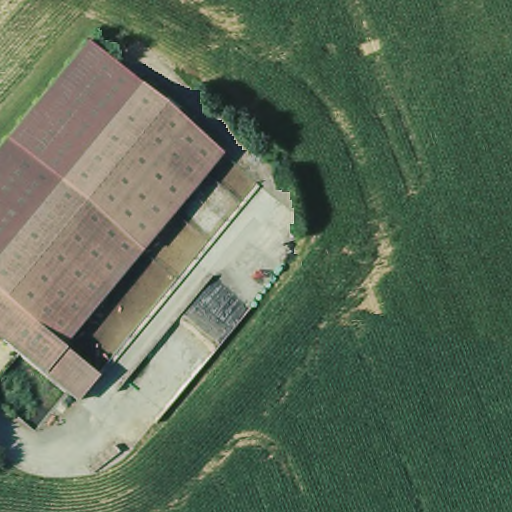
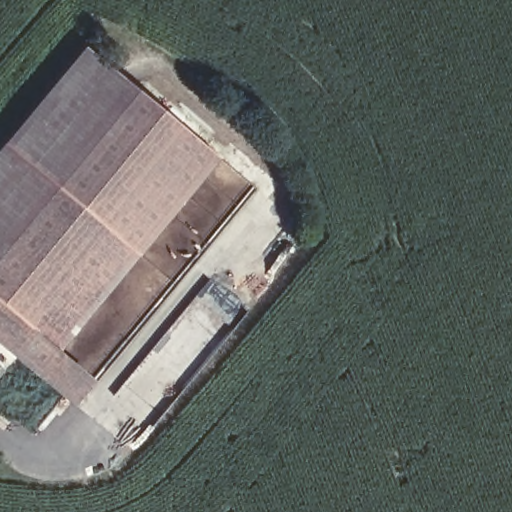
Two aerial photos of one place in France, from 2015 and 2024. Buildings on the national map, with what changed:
unchanged [(228,158),(69,349),(101,377),(77,406),(0,342),(0,303),(4,298),(0,295),(0,144),(82,44),(228,158)]

